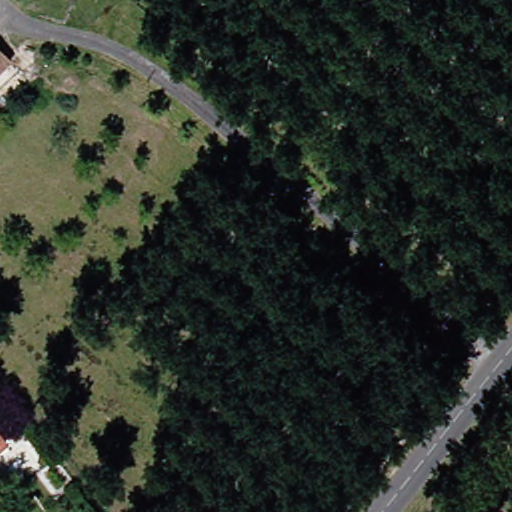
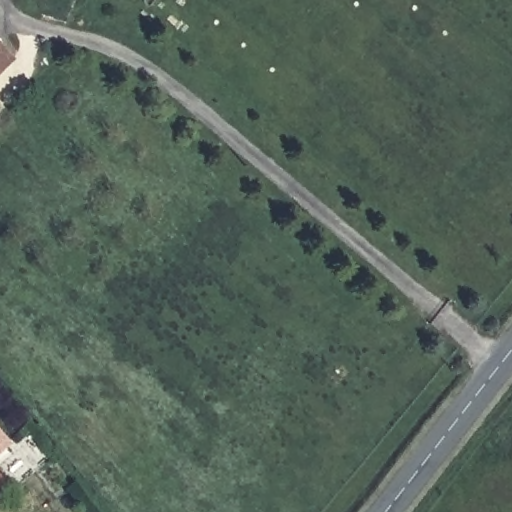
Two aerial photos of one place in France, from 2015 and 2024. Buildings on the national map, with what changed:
unchanged [(0,76),(0,48),(13,63),(0,76)]
unchanged [(6,443),(0,449),(0,435),(6,443)]
unchanged [(5,485),(0,490),(0,479),(5,485)]

